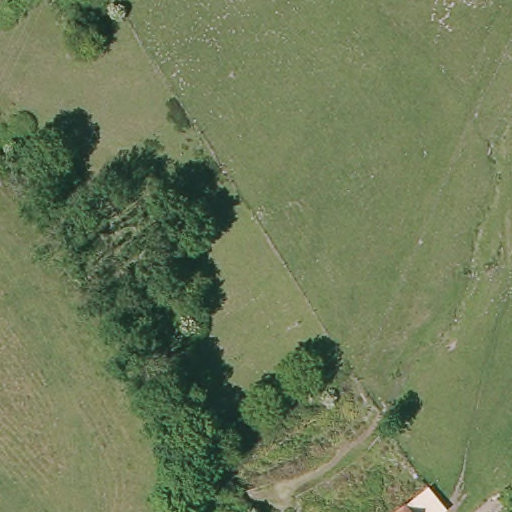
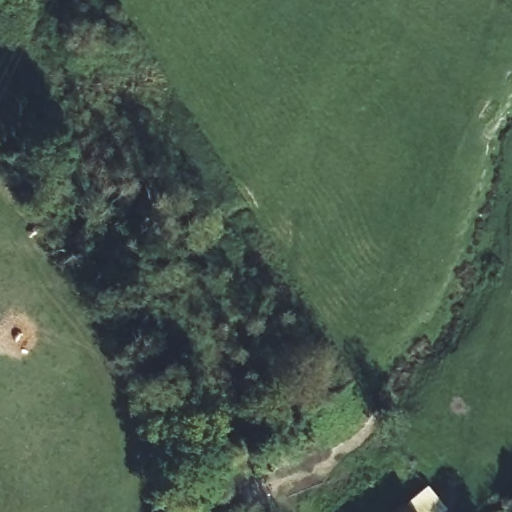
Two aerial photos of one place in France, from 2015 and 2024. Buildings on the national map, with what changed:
unchanged [(435,488),(451,512),(403,512),(431,491),(435,488)]

